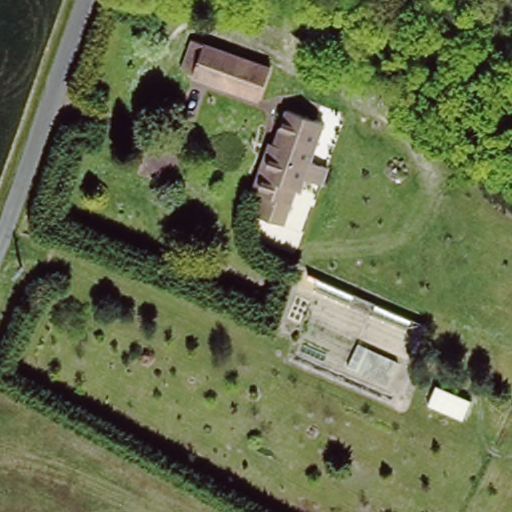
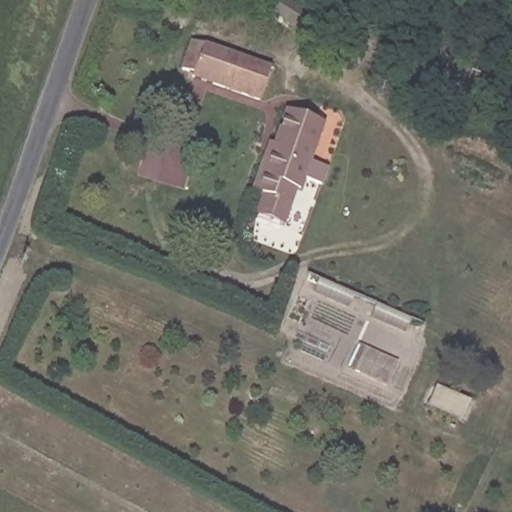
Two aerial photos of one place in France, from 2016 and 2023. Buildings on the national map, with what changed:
unchanged [(355,32),(344,51),(302,27),(314,8),(355,32)]
unchanged [(266,68),(255,101),(185,76),(186,71),(176,68),(188,40),(266,68)]
unchanged [(282,204),(255,193),(268,154),(271,147),(278,150),(291,116),(325,127),(311,165),(325,170),(319,187),(305,183),(300,194),(295,208),(282,204)]

